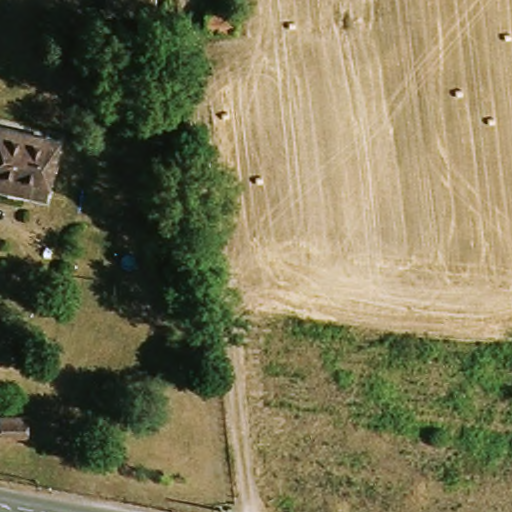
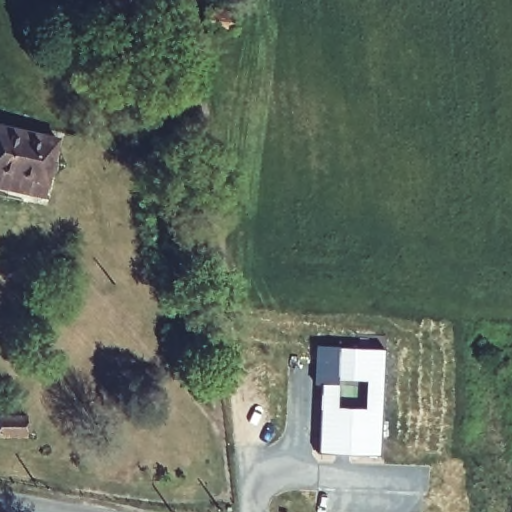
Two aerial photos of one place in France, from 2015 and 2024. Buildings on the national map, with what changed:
unchanged [(100,4),(101,0),(151,0),(150,10),(100,4)]
unchanged [(238,33),(209,29),(211,11),(240,15),(238,33)]
unchanged [(0,179),(0,132),(22,132),(20,179),(0,179)]
unchanged [(22,132),(43,133),(45,180),(20,179),(22,132)]
new [(324,386),(340,387),(339,409),(367,412),(369,383),(339,381),(341,349),(388,353),(380,459),(319,454),(324,386)]
unchanged [(33,416),(34,436),(2,437),(1,416),(33,416)]

